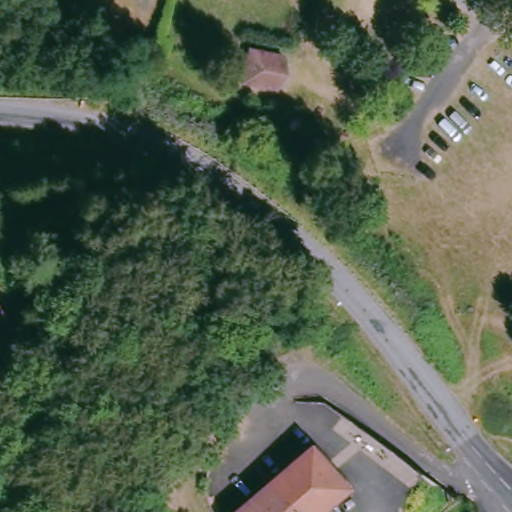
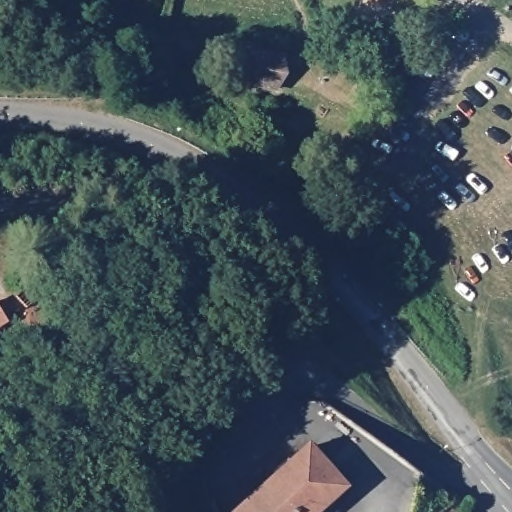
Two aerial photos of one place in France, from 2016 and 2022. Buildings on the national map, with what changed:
unchanged [(144,34),(141,46),(120,41),(123,30),(144,34)]
unchanged [(287,56),(282,87),(254,82),(259,51),(287,56)]
unchanged [(7,320),(0,325),(0,308),(7,320)]
unchanged [(317,451),(353,494),(330,512),(253,512),(249,507),(317,451)]
unchanged [(253,512),(243,512),(249,507),(253,512)]

